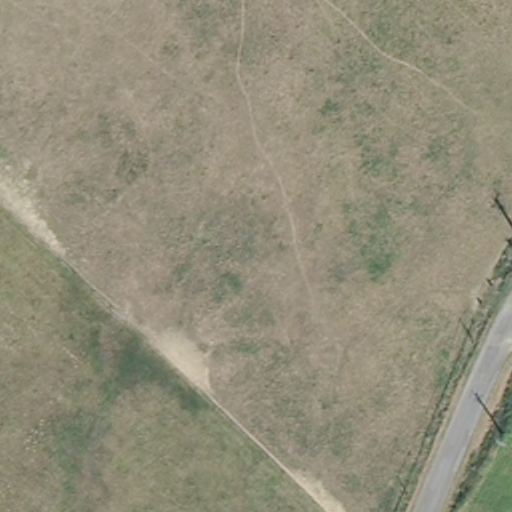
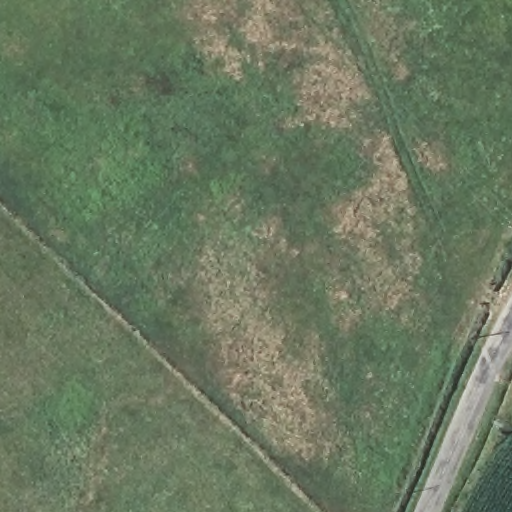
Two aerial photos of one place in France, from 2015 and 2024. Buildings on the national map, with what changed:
[]

